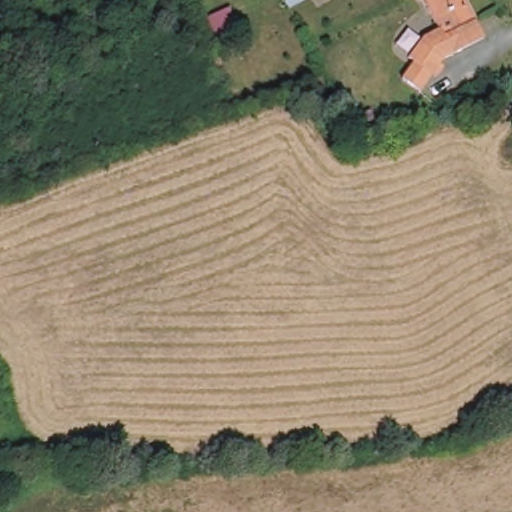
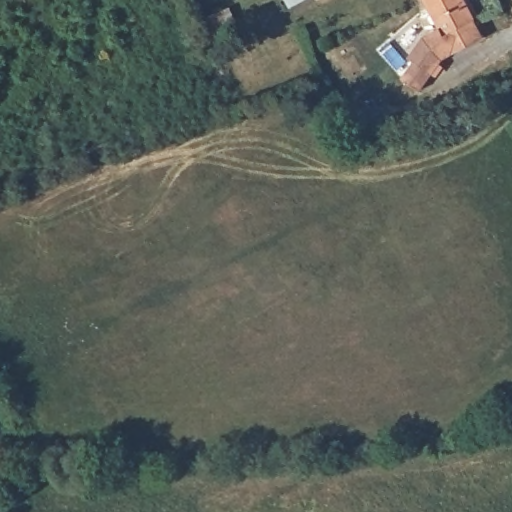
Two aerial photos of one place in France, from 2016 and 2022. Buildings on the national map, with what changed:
unchanged [(288,0),(307,0),(293,8),(288,0)]
unchanged [(464,0),(477,26),(456,36),(449,22),(436,29),(423,1),(422,0),(464,0)]
unchanged [(449,22),(456,36),(477,26),(485,39),(444,59),(441,63),(444,65),(437,77),(434,75),(423,92),(402,78),(413,61),(409,59),(423,36),(436,29),(449,22)]

